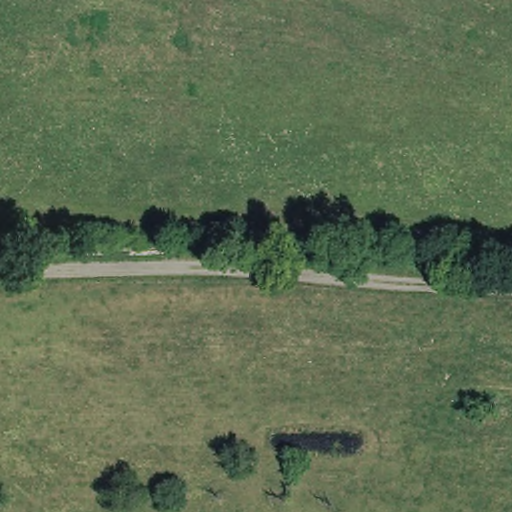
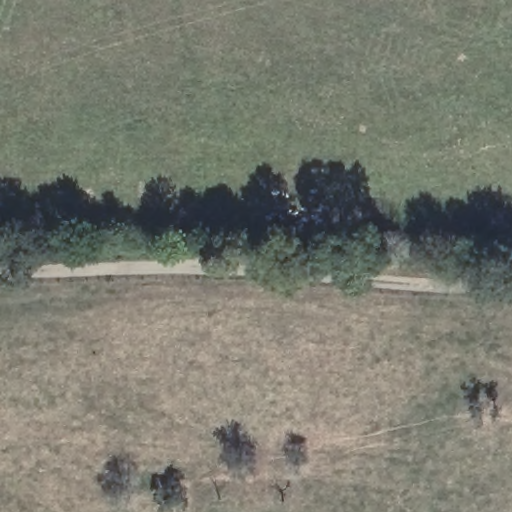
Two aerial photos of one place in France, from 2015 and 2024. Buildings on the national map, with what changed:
[]

